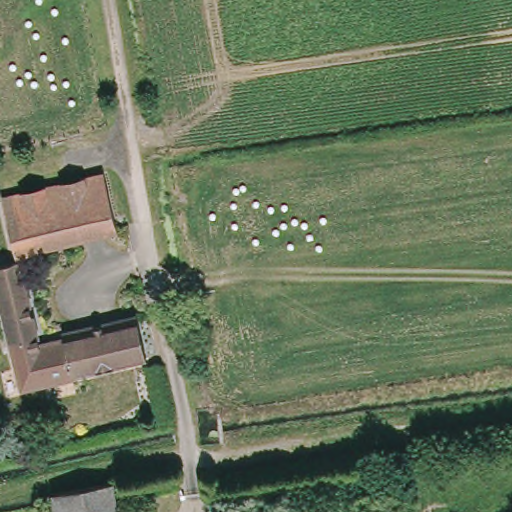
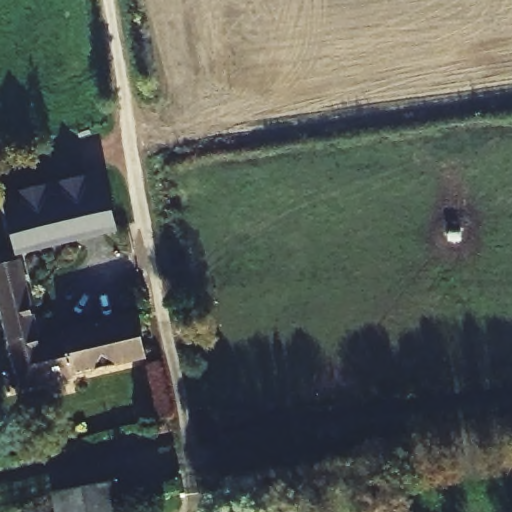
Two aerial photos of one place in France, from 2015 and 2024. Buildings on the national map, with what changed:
unchanged [(130,292),(127,277),(111,280),(100,232),(14,252),(1,196),(105,172),(118,227),(129,224),(135,247),(141,246),(146,272),(140,273),(143,289),(134,291),(130,292)]
unchanged [(0,283),(0,265),(16,261),(22,259),(41,344),(68,338),(67,332),(140,318),(149,357),(24,384),(0,283)]
unchanged [(120,512),(59,512),(56,491),(115,481),(120,512)]

